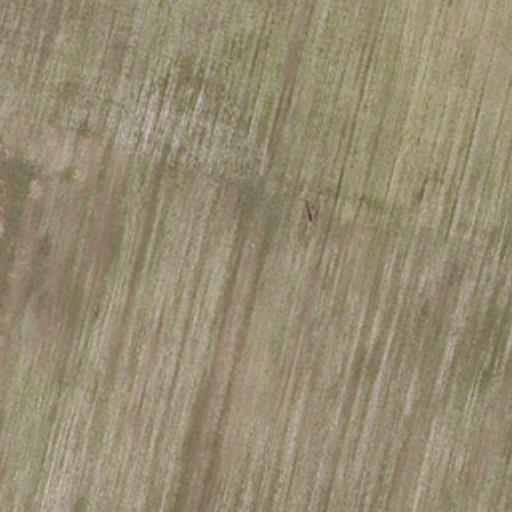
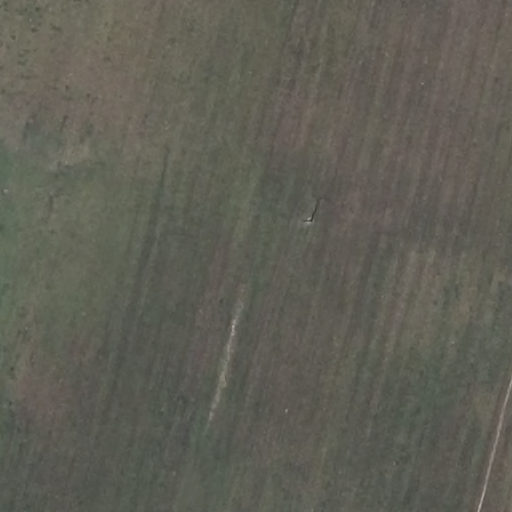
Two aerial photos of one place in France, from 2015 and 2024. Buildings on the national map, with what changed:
[]

